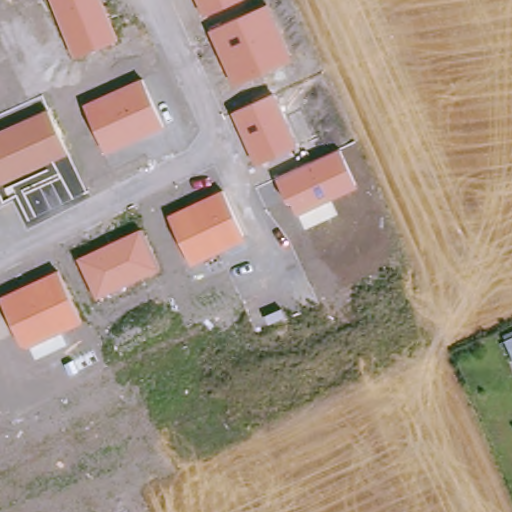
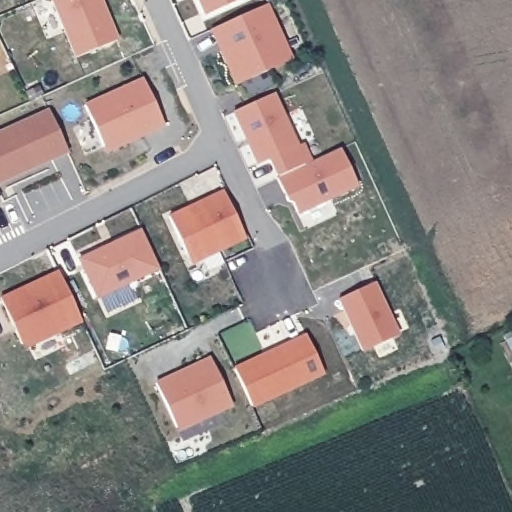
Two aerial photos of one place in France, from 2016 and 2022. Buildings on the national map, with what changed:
unchanged [(50,0),(103,0),(119,39),(72,57),(50,0)]
unchanged [(240,0),(203,16),(196,0),(240,0)]
unchanged [(209,31),(269,5),(292,59),(233,85),(209,31)]
unchanged [(164,126),(105,151),(84,104),(142,78),(164,126)]
unchanged [(232,113),(275,94),(297,145),(255,164),(232,113)]
unchanged [(0,185),(0,131),(47,109),(68,154),(0,185)]
unchanged [(291,199),(287,200),(277,179),(340,150),(357,187),(300,215),(291,199)]
unchanged [(168,215),(223,190),(245,239),(192,265),(168,215)]
unchanged [(77,259),(142,229),(160,270),(97,298),(77,259)]
unchanged [(29,347),(22,345),(0,297),(59,271),(82,322),(29,347)]
new [(360,352),(337,300),(375,282),(399,335),(360,352)]
unchanged [(512,330),(512,358),(500,336),(512,330)]
new [(233,368),(305,334),(322,375),(252,407),(233,368)]
new [(179,431),(155,381),(208,357),(232,408),(179,431)]

